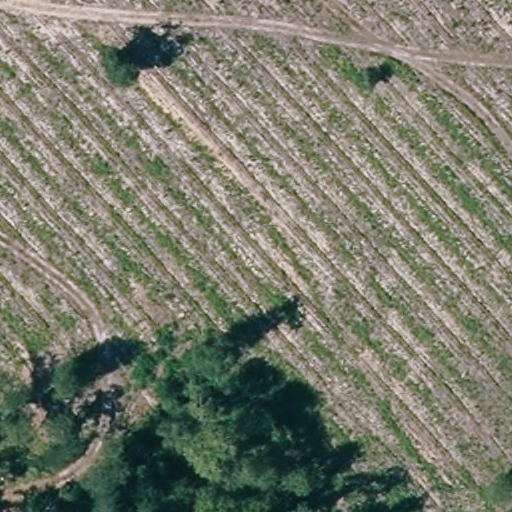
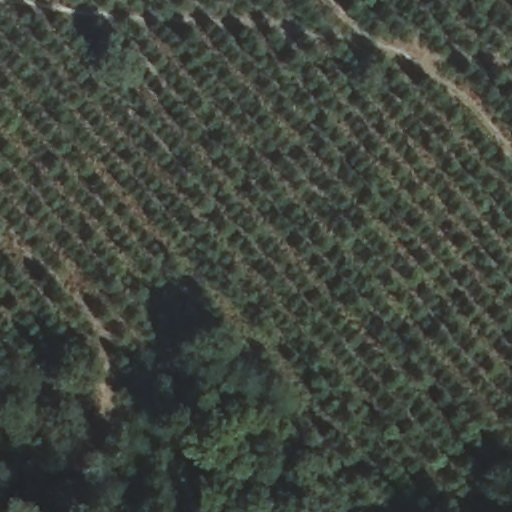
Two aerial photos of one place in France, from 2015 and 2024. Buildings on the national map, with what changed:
[]

